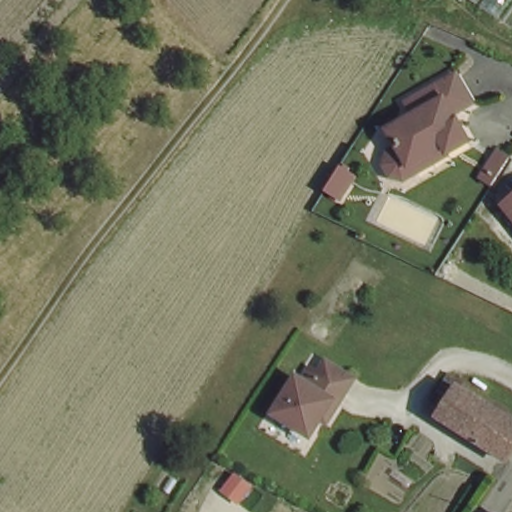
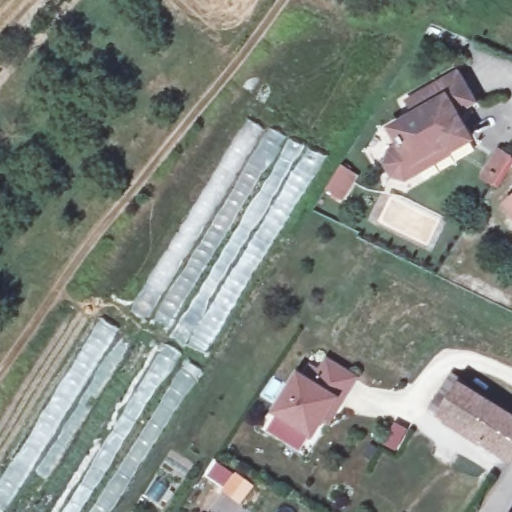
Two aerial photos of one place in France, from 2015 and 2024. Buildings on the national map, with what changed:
new [(477,0),(480,0),(479,1),(477,0)]
unchanged [(466,105),(447,116),(464,144),(444,155),(440,148),(413,164),(410,175),(400,181),(388,179),(381,168),(385,156),(395,150),(385,134),(411,119),(403,106),(451,78),(455,75),(471,102),(466,105)]
new [(204,355),(168,335),(163,340),(144,327),(141,332),(123,321),(246,120),(266,132),(276,118),(312,140),(308,146),(324,157),(204,355)]
unchanged [(500,212),(512,202),(512,227),(500,212)]
new [(60,512),(162,345),(183,356),(83,512),(60,512)]
unchanged [(321,418),(310,435),(273,413),(296,376),(301,380),(309,367),(318,372),(325,360),(352,377),(336,402),(326,421),(321,418)]
unchanged [(450,428),(441,423),(432,418),(442,398),(452,380),(465,387),(471,391),(468,396),(488,407),(512,422),(512,465),(450,428)]

